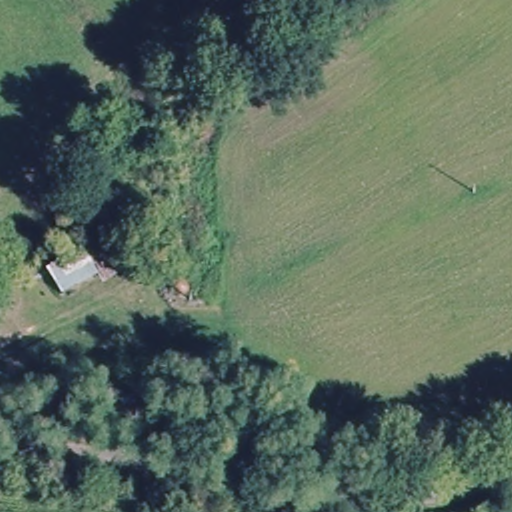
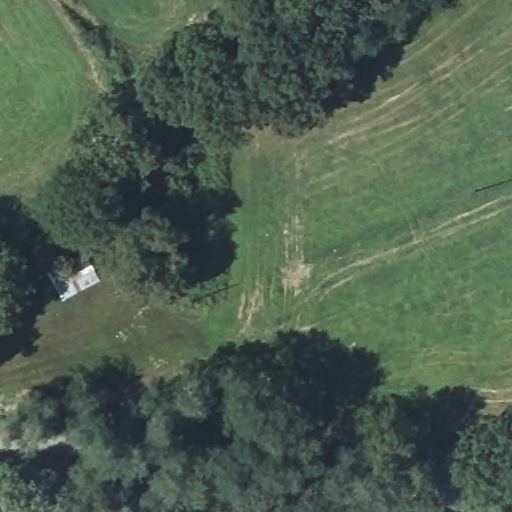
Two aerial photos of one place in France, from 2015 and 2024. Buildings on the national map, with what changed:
unchanged [(40,263),(121,233),(137,261),(58,292),(40,263)]

